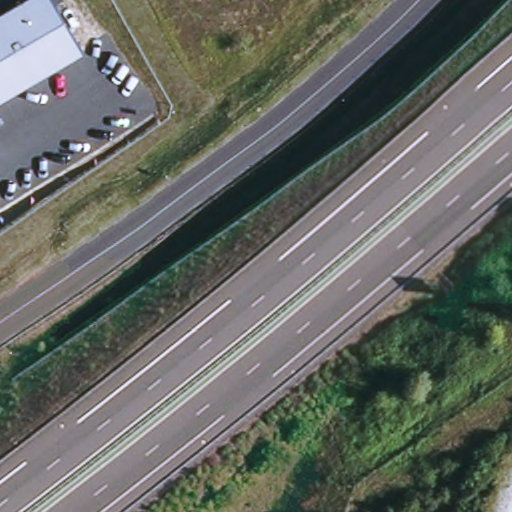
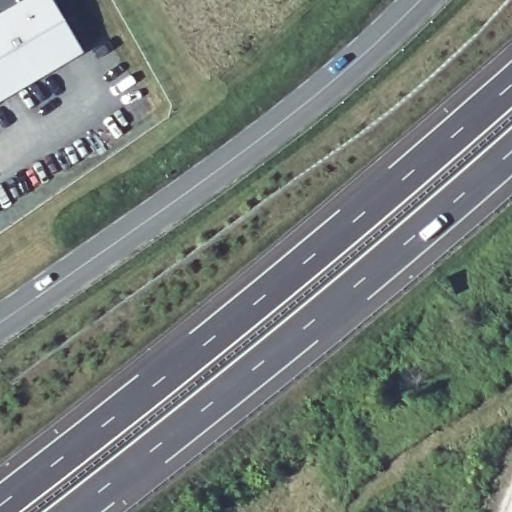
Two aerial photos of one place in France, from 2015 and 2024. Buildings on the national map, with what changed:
unchanged [(84,50),(0,100),(0,11),(19,0),(54,0),(84,50)]

